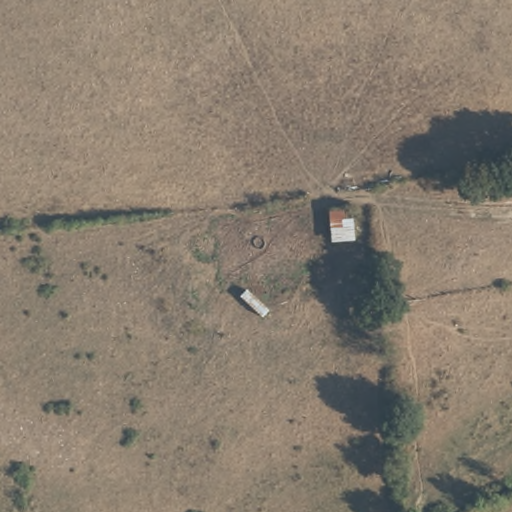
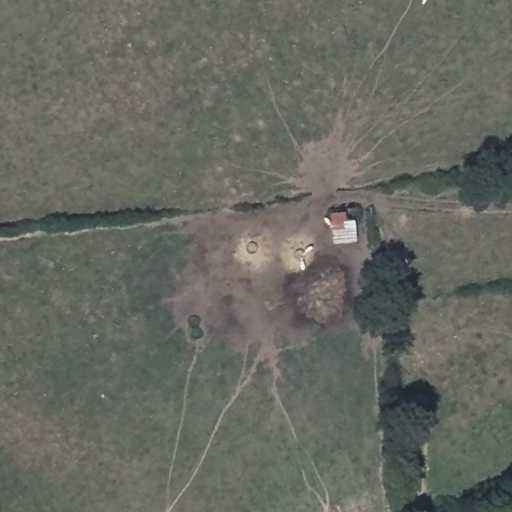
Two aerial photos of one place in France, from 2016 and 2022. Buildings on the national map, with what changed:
unchanged [(356,204),(360,240),(332,241),(331,207),(356,204)]

